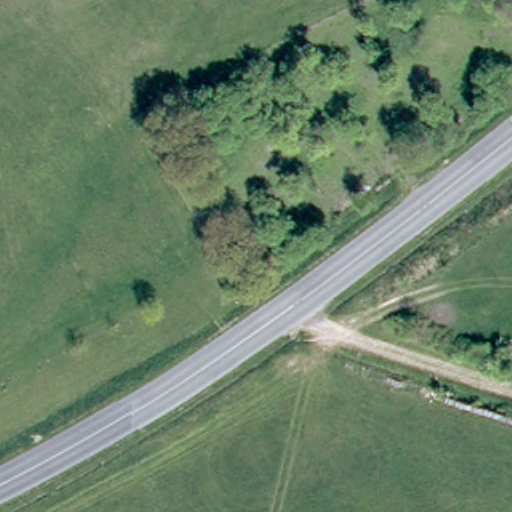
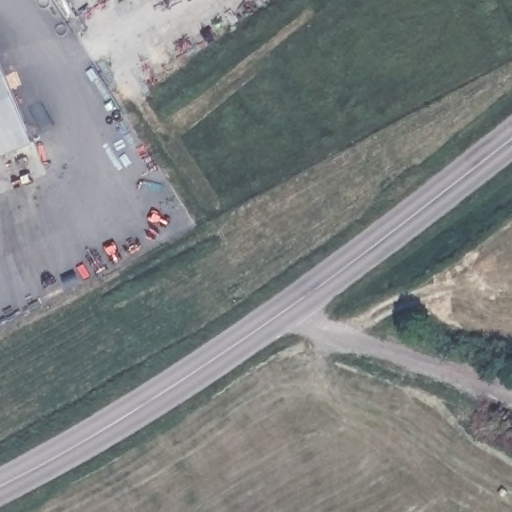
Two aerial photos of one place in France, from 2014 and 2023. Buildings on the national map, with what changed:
new [(33,142),(0,156),(0,65),(33,142)]

